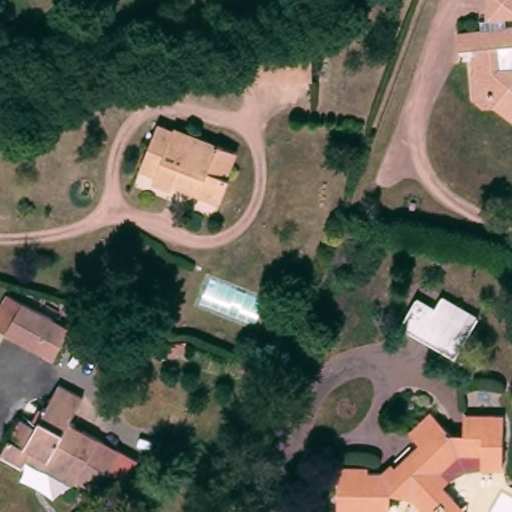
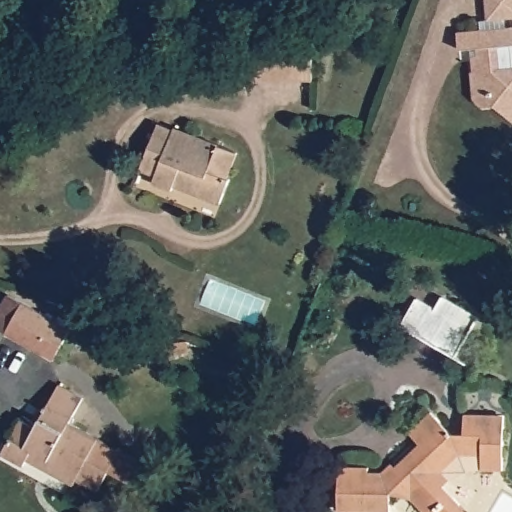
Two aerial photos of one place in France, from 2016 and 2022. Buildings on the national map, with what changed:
unchanged [(483,106),(473,99),(471,71),(473,70),(472,55),(478,55),(477,47),(459,49),(457,31),(481,29),(480,20),(487,19),(486,0),(512,0),(512,17),(506,17),(506,26),(512,26),(512,104),(494,105),(483,106)]
unchanged [(255,55),(255,45),(313,45),(313,55),(313,84),(240,85),(240,55),(255,55)]
unchanged [(232,177),(235,178),(225,203),(203,195),(205,190),(181,180),(177,190),(158,182),(160,175),(145,169),(163,124),(178,130),(179,127),(242,152),(232,177)]
unchanged [(385,297),(406,301),(409,288),(462,298),(453,343),(379,329),(385,297)]
unchanged [(53,364),(0,335),(0,313),(8,298),(70,333),(53,364)]
unchanged [(157,356),(155,345),(175,341),(187,340),(189,351),(157,356)]
unchanged [(24,470),(2,457),(21,423),(36,431),(59,389),(83,402),(70,427),(120,455),(98,495),(75,483),(77,480),(32,455),(24,470)]
unchanged [(406,492),(390,492),(390,512),(338,511),(338,466),(368,466),(368,471),(382,471),(392,462),(398,469),(423,446),(409,431),(431,411),(436,416),(456,438),(464,438),(464,413),(504,415),(503,470),(481,470),(482,454),(460,454),(441,471),(449,480),(443,485),(460,504),(468,512),(424,512),(406,492)]

